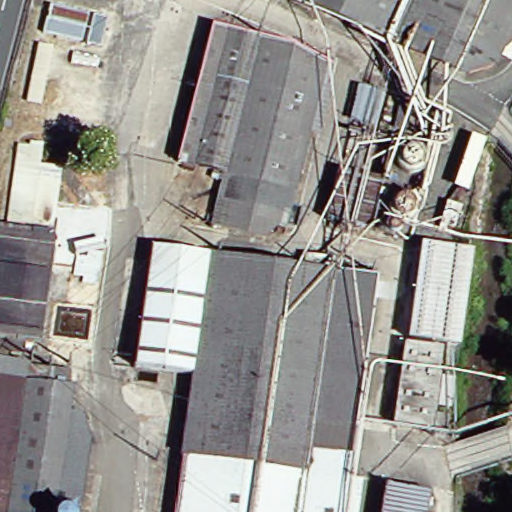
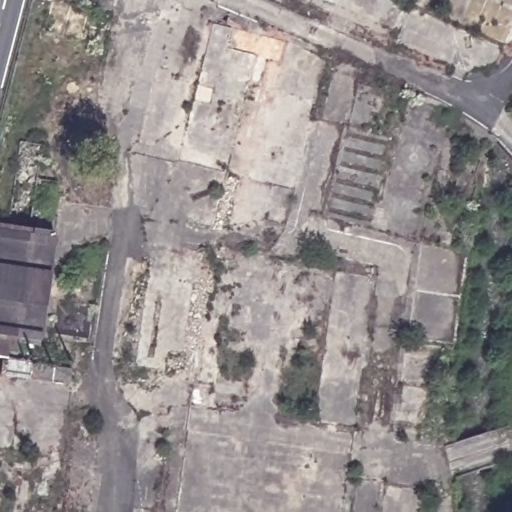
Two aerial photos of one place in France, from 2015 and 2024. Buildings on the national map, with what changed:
unchanged [(95,77),(35,69),(49,0),(114,0),(95,77)]
demolished [(455,83),(382,51),(283,0),(512,0),(512,31),(492,70),(455,83)]
demolished [(205,227),(215,180),(208,179),(210,169),(180,164),(215,28),(258,40),(325,61),(280,242),(205,227)]
demolished [(356,88),(383,95),(371,137),(385,140),(395,106),(410,111),(414,103),(452,116),(424,190),(415,229),(432,229),(443,202),(458,207),(463,191),(452,187),(472,137),(480,140),(462,249),(452,347),(442,346),(431,438),(391,434),(400,339),(416,244),(323,226),(356,88)]
demolished [(0,512),(0,201),(12,142),(22,142),(23,138),(39,140),(40,135),(52,136),(48,164),(59,165),(37,383),(67,385),(48,512),(0,512)]
new [(55,234),(40,341),(28,340),(26,353),(10,351),(8,359),(0,358),(0,227),(55,234)]
demolished [(131,369),(149,247),(206,256),(294,269),(297,257),(323,260),(322,273),(380,282),(350,482),(362,483),(358,512),(171,512),(187,376),(131,369)]
demolished [(423,512),(377,512),(381,487),(426,494),(423,512)]

